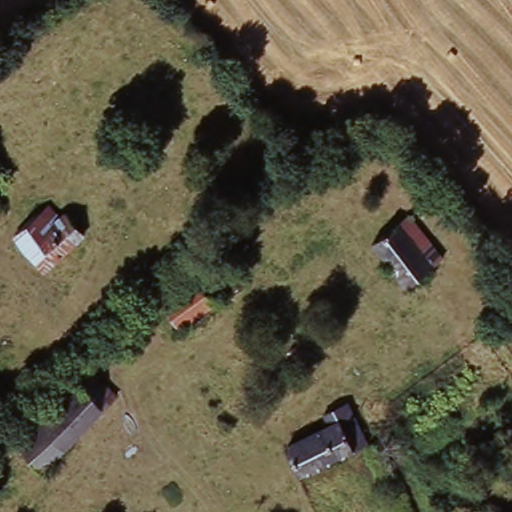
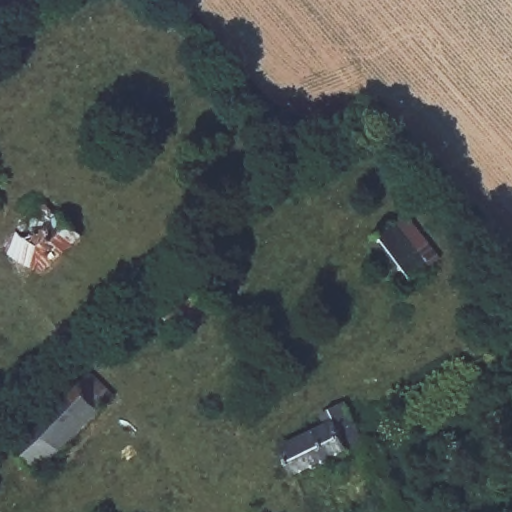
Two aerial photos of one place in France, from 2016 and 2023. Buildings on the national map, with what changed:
unchanged [(51,208),(62,219),(66,214),(86,235),(48,271),(17,236),(51,208)]
unchanged [(376,261),(402,239),(411,232),(446,275),(434,282),(409,304),(376,261)]
unchanged [(213,275),(232,297),(220,308),(201,284),(213,275)]
unchanged [(196,290),(212,313),(165,345),(150,322),(196,290)]
unchanged [(57,345),(67,358),(43,377),(33,364),(57,345)]
unchanged [(8,439),(45,407),(73,383),(80,390),(91,380),(114,404),(104,414),(40,477),(8,439)]
unchanged [(280,452),(320,432),(316,419),(341,409),(360,446),(294,481),(280,452)]

